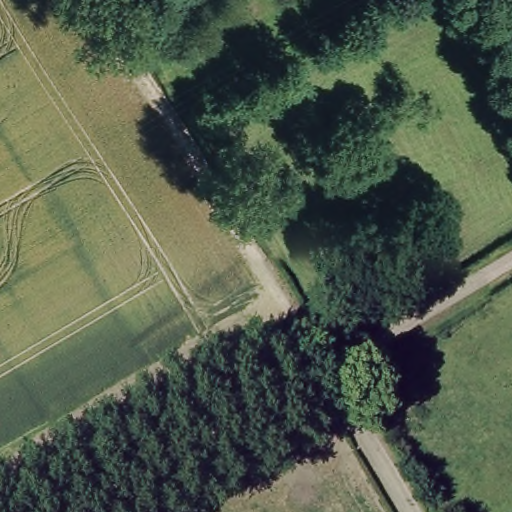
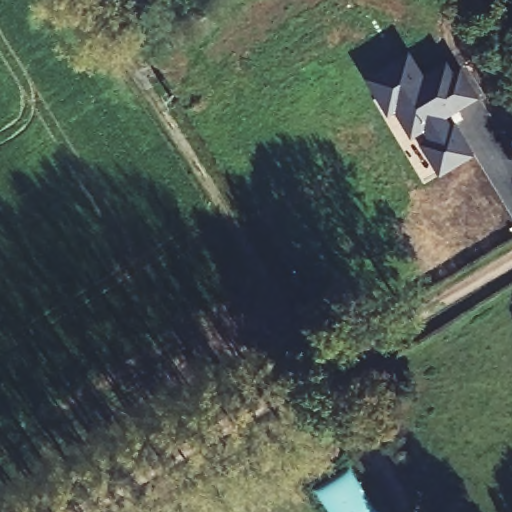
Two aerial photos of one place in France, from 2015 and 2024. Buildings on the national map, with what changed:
new [(425,72),(451,59),(456,67),(463,62),(480,97),(450,115),(455,122),(458,120),(477,154),(441,174),(421,141),(430,137),(426,129),(412,137),(398,111),(390,114),(367,76),(411,50),(425,72)]

